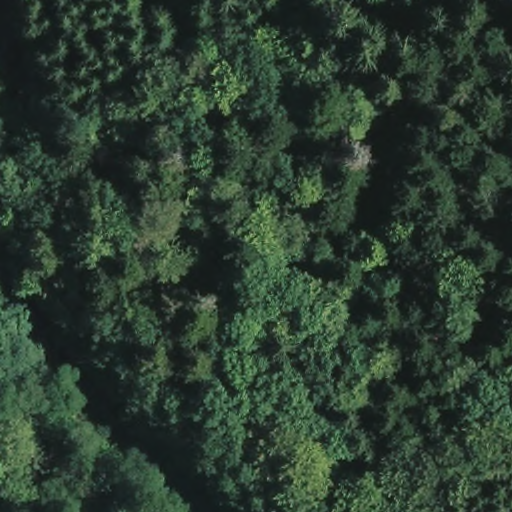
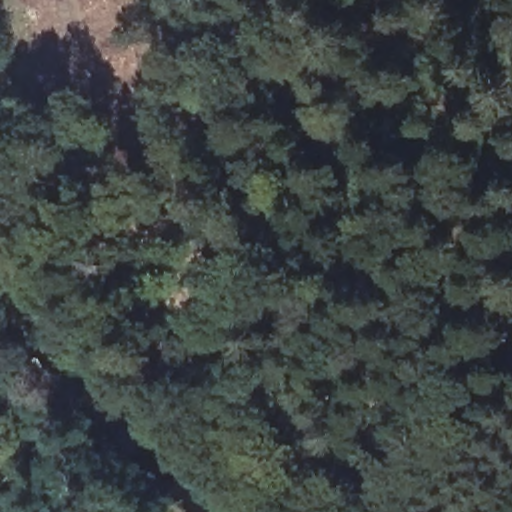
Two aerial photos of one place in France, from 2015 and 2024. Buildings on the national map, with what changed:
unchanged [(40,381),(50,372),(63,389),(53,397),(40,381)]
unchanged [(54,415),(31,433),(5,401),(26,383),(54,415)]

